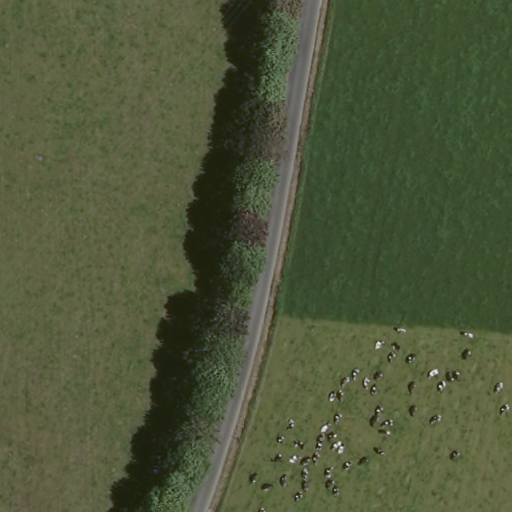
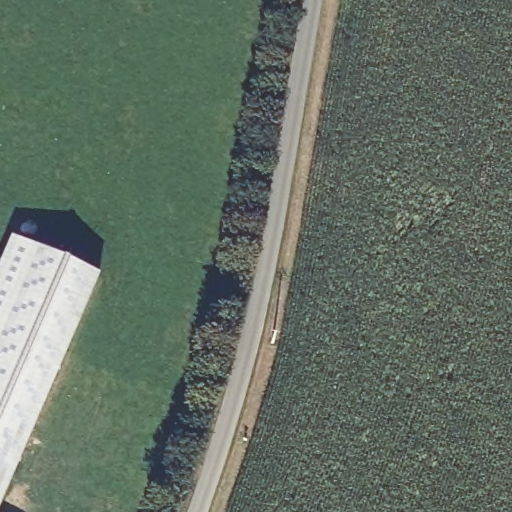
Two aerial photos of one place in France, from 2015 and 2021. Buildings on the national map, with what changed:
new [(0,510),(0,267),(12,240),(99,279),(0,510)]

